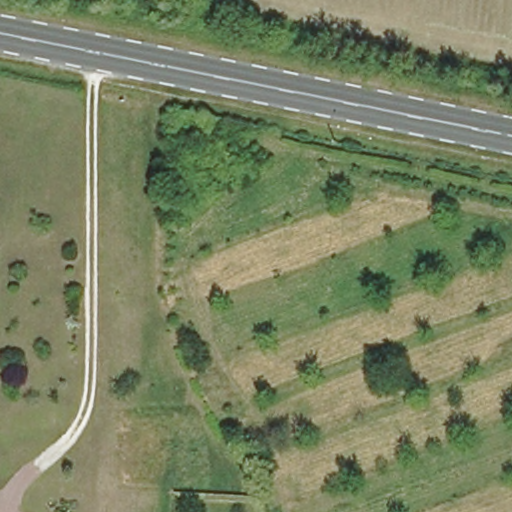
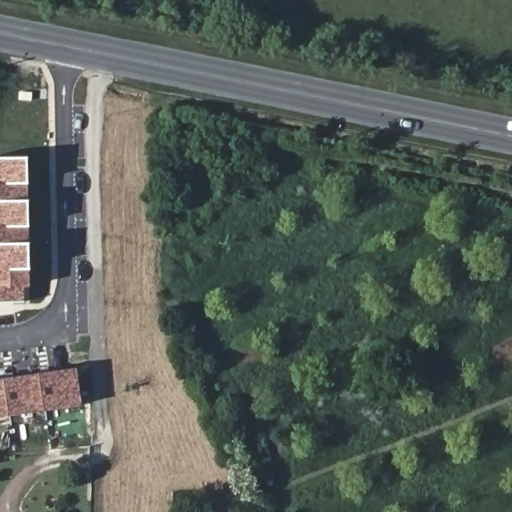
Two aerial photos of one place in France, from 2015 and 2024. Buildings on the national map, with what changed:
unchanged [(212,115),(205,144),(165,135),(171,106),(212,115)]
new [(35,300),(0,300),(0,159),(29,159),(35,300)]
new [(83,403),(0,415),(0,379),(77,370),(83,403)]

